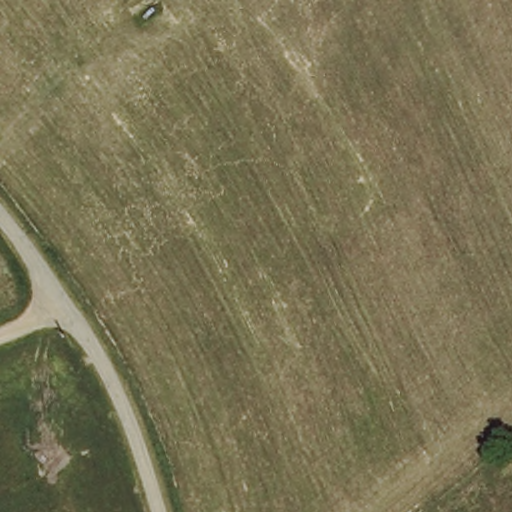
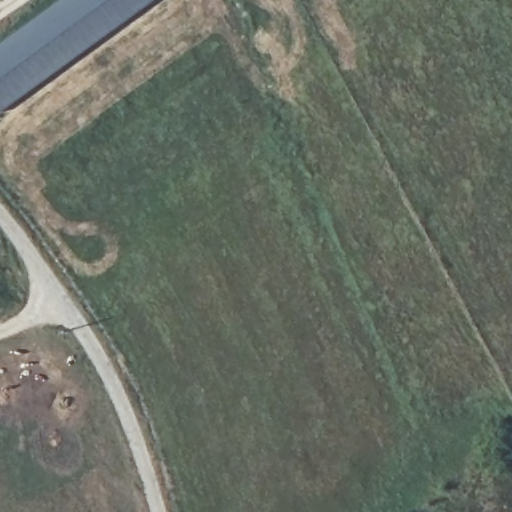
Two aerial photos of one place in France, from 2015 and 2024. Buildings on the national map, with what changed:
new [(61,0),(156,0),(0,113),(0,44),(61,0)]

